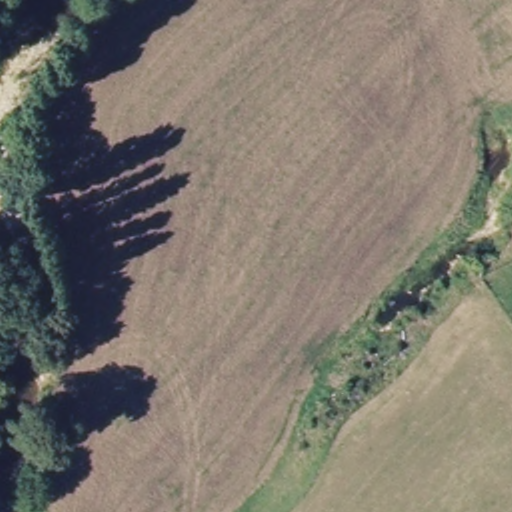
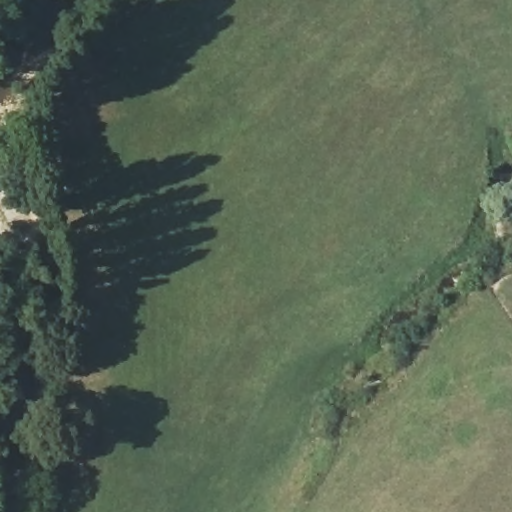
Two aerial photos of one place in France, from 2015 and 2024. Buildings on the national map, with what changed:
[]

